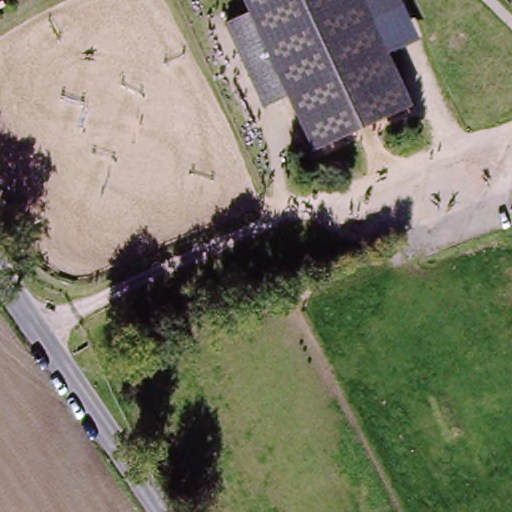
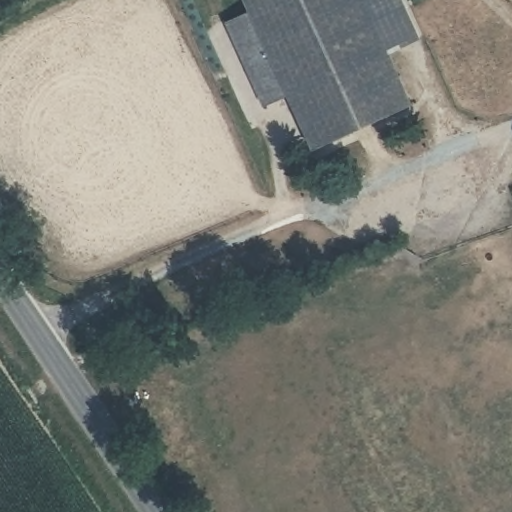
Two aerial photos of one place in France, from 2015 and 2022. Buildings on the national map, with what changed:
unchanged [(413,92),(415,97),(316,144),(291,90),(251,9),(247,0),(368,0),(379,22),(413,92)]
unchanged [(379,22),(368,0),(402,0),(407,10),(379,22)]
unchanged [(266,101),(226,21),(251,9),(291,90),(266,101)]

